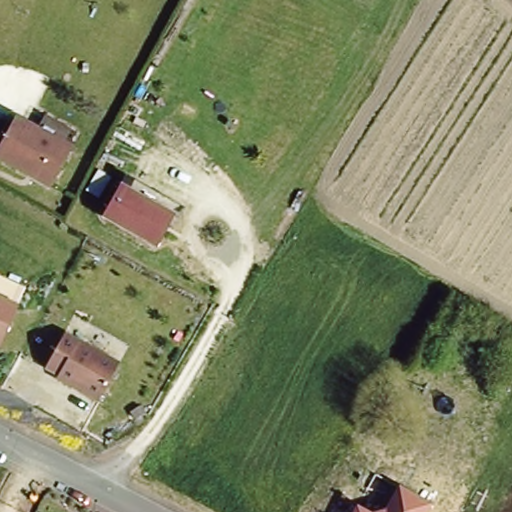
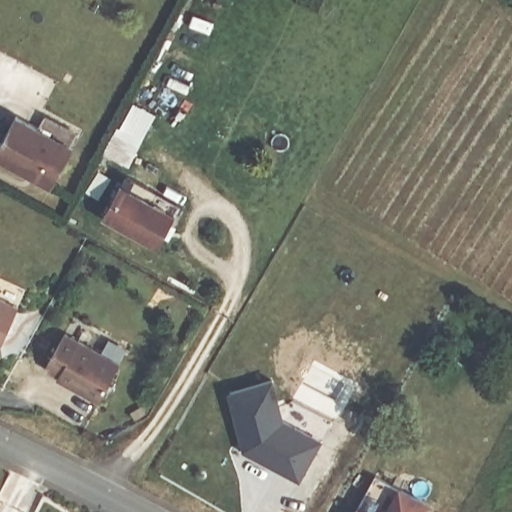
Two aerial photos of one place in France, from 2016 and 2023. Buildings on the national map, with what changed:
unchanged [(39,125),(43,115),(79,132),(70,145),(48,187),(0,160),(0,142),(17,112),(39,125)]
unchanged [(120,182),(174,213),(157,247),(103,216),(120,182)]
unchanged [(0,330),(0,300),(10,305),(0,330)]
unchanged [(113,361),(95,398),(52,382),(57,373),(45,366),(62,335),(113,361)]
new [(246,452),(231,392),(277,377),(284,418),(325,441),(303,482),(246,452)]
unchanged [(397,487),(428,502),(423,512),(377,512),(387,508),(397,487)]
unchanged [(353,512),(355,507),(367,512),(353,512)]

